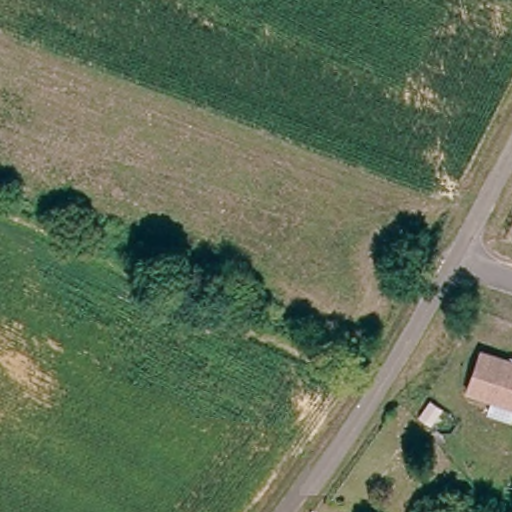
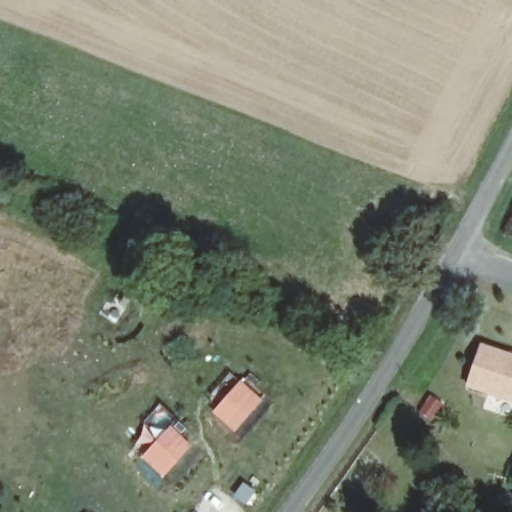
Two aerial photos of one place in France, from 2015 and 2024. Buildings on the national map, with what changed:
unchanged [(512,400),(469,383),(484,343),(512,354),(512,400)]
new [(261,400),(234,432),(211,413),(240,381),(261,400)]
unchanged [(431,397),(441,407),(428,422),(417,412),(431,397)]
new [(192,446),(163,477),(140,457),(170,426),(192,446)]

